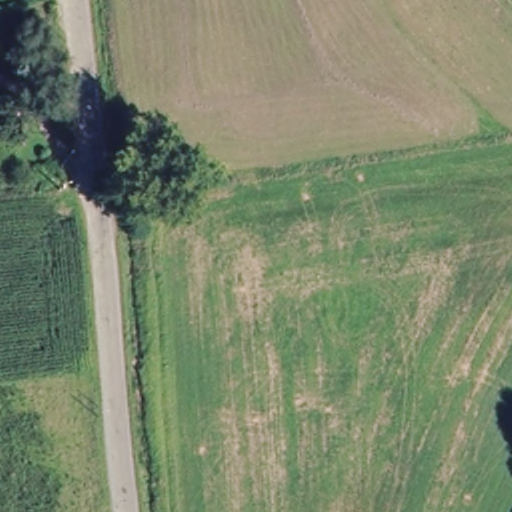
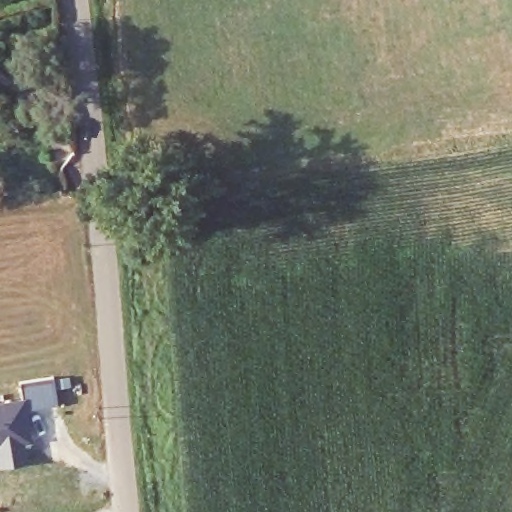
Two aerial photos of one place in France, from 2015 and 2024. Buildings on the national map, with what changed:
new [(21,382),(53,377),(57,406),(28,410),(35,462),(0,467),(0,402),(24,398),(21,382)]

